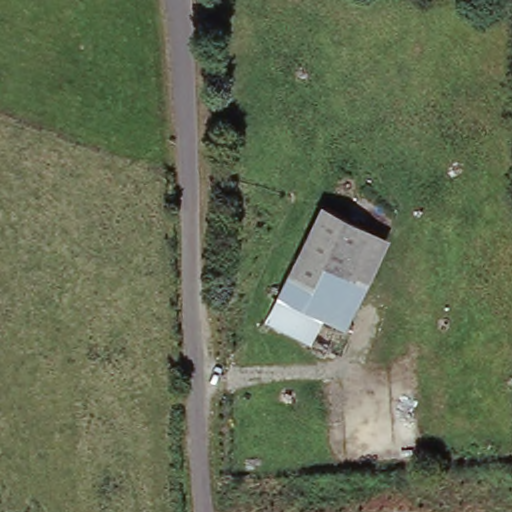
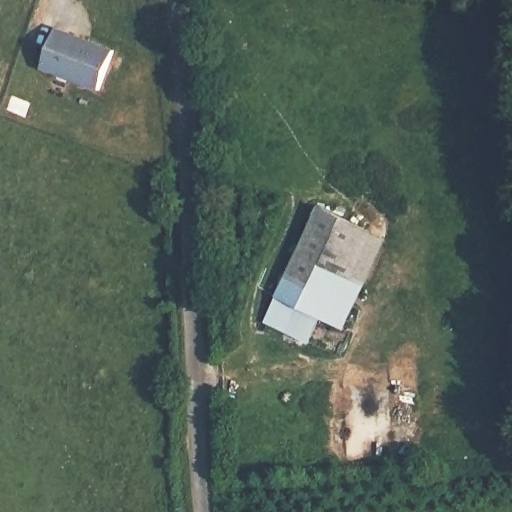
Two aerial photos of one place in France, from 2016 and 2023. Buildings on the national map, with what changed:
new [(61,29),(119,50),(104,89),(46,67),(61,29)]
unchanged [(387,250),(341,338),(321,327),(280,307),(323,215),(350,234),(387,250)]

